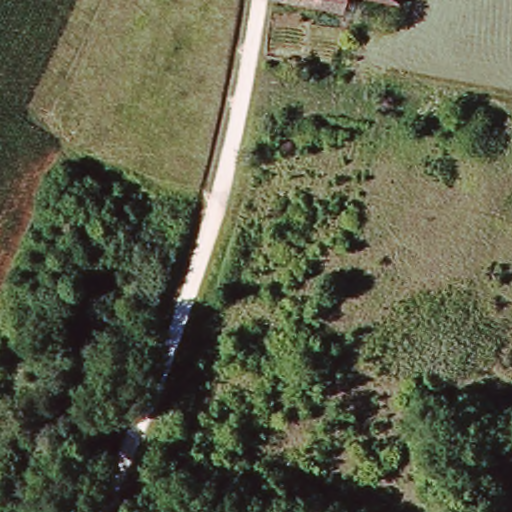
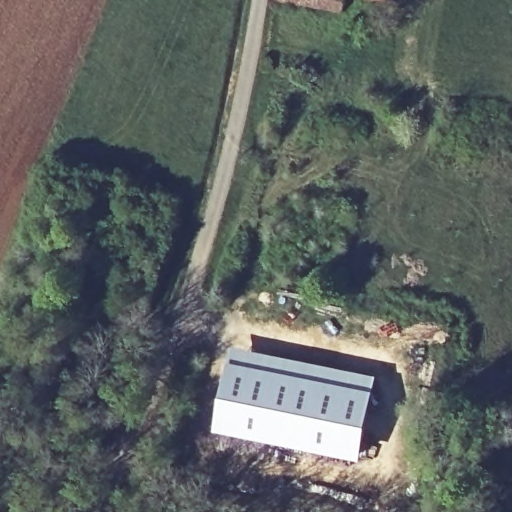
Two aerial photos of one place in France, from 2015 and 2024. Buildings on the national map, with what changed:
unchanged [(343,9),(269,1),(269,0),(347,0),(343,9)]
unchanged [(399,2),(388,0),(399,0),(399,2)]
new [(231,348),(371,378),(368,397),(228,367),(231,348)]
new [(228,367),(368,397),(355,457),(215,427),(228,367)]

